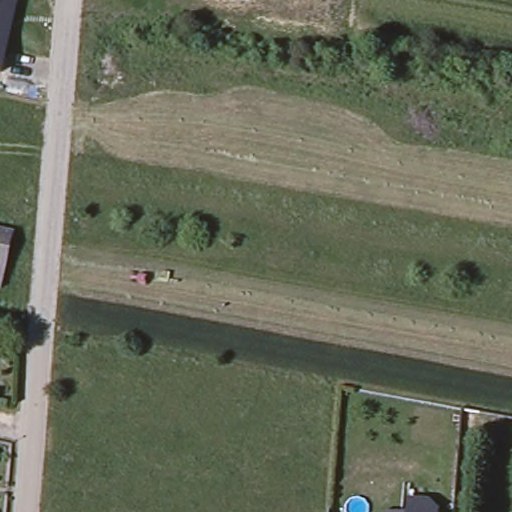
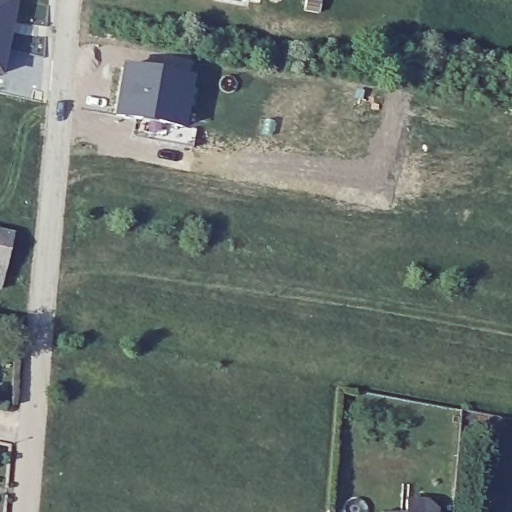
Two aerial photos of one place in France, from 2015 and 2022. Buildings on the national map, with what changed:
unchanged [(2,75),(0,74),(0,0),(20,0),(2,75)]
unchanged [(239,5),(215,0),(240,0),(239,5)]
new [(125,60),(190,72),(181,122),(135,114),(116,110),(125,60)]
new [(135,114),(181,122),(195,124),(191,142),(131,131),(135,114)]
unchanged [(15,229),(0,287),(0,226),(15,229)]
unchanged [(437,510),(437,512),(384,512),(385,511),(407,511),(408,500),(430,501),(437,510)]

